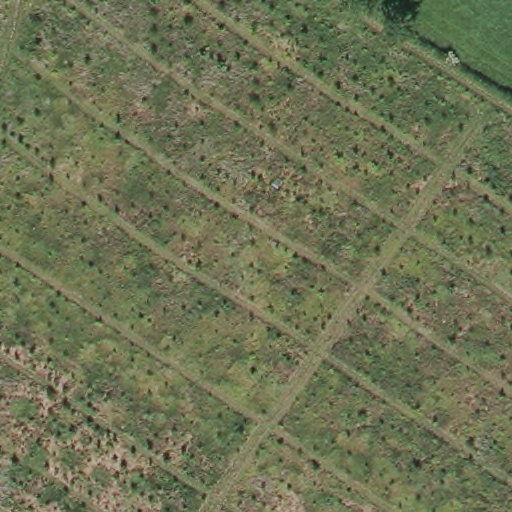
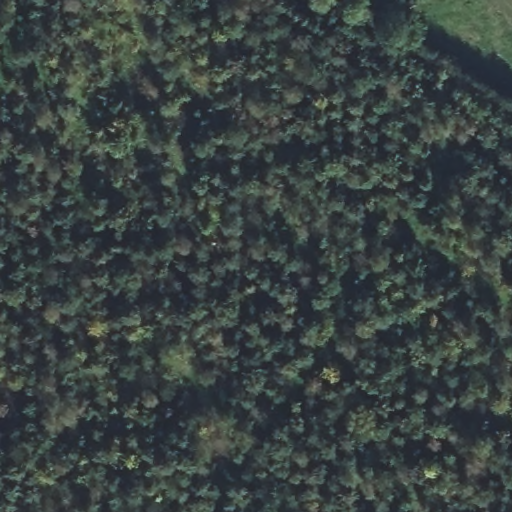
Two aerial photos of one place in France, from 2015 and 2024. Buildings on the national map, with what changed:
[]

